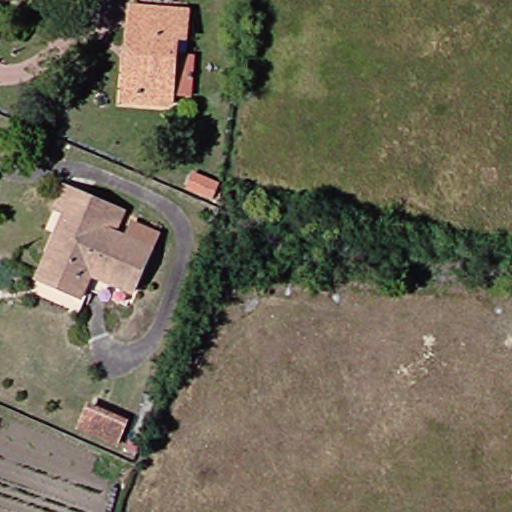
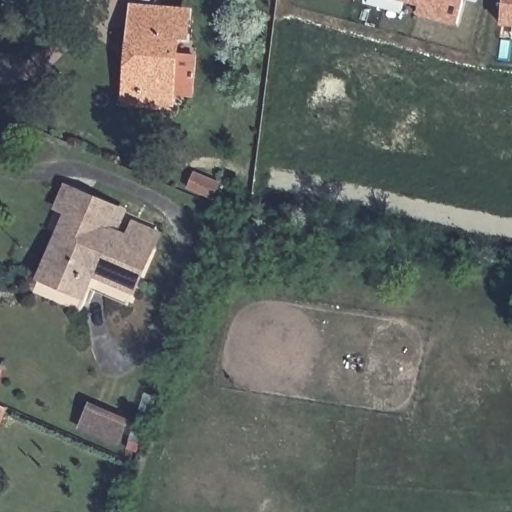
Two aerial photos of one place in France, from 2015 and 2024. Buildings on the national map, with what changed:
new [(420,16),(422,7),(398,2),(396,10),(376,4),(377,0),(464,0),(457,26),(420,16)]
new [(474,0),(479,0),(479,1),(474,0)]
new [(501,26),(504,0),(512,0),(512,27),(501,26)]
unchanged [(121,95),(125,42),(126,21),(128,3),(137,4),(182,7),(180,35),(172,34),(170,51),(189,52),(186,91),(167,90),(167,91),(166,99),(121,95)]
unchanged [(221,186),(218,201),(206,197),(209,183),(221,186)]
unchanged [(114,212),(105,233),(117,238),(124,223),(149,234),(142,249),(118,307),(76,289),(73,298),(29,280),(48,235),(56,214),(45,209),(55,187),(76,196),(109,210),(114,212)]
unchanged [(89,406),(125,422),(115,445),(79,429),(89,406)]

